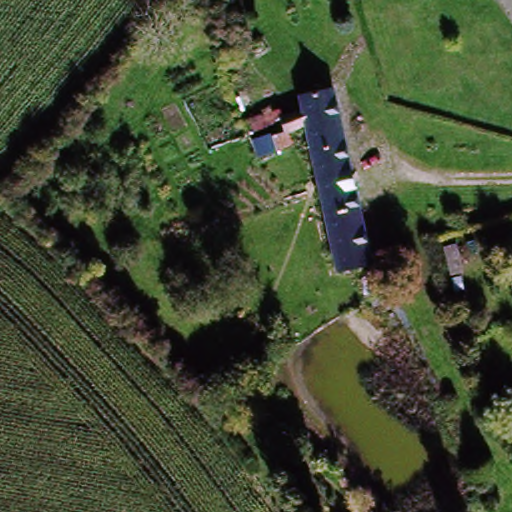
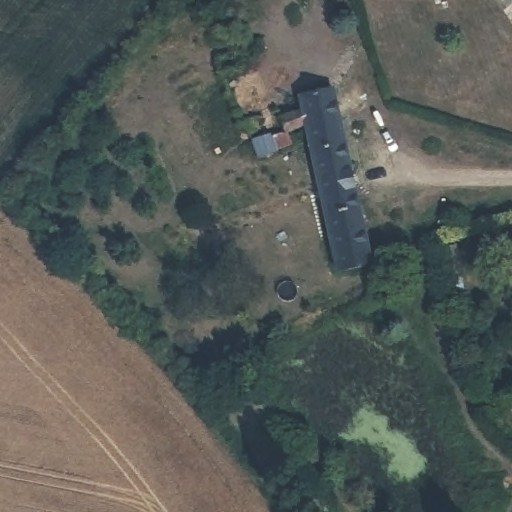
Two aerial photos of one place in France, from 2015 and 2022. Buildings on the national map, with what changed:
unchanged [(334,91),(371,260),(366,260),(338,267),(313,145),(284,151),(279,137),(277,126),(308,120),(304,98),(334,91)]

